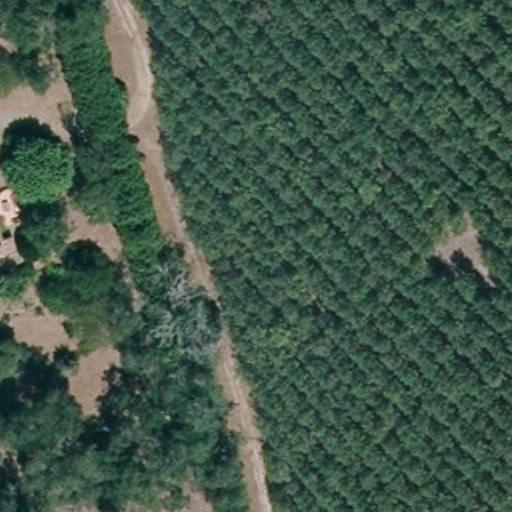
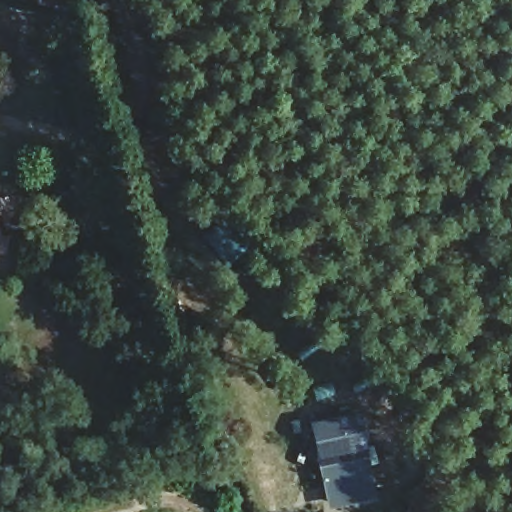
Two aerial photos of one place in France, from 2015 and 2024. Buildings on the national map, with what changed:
unchanged [(9,241),(11,249),(0,252),(0,243),(9,241)]
new [(376,499),(328,510),(310,424),(359,414),(376,499)]

